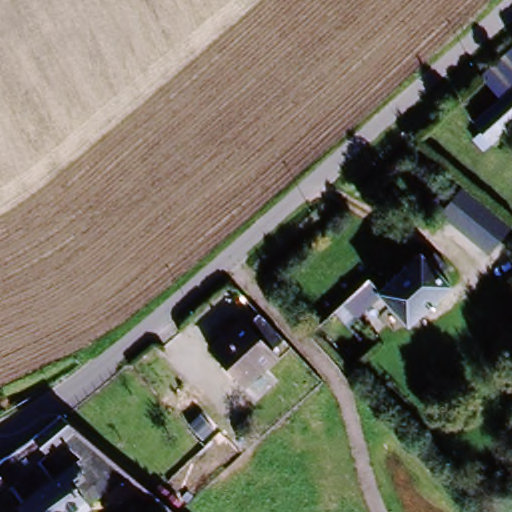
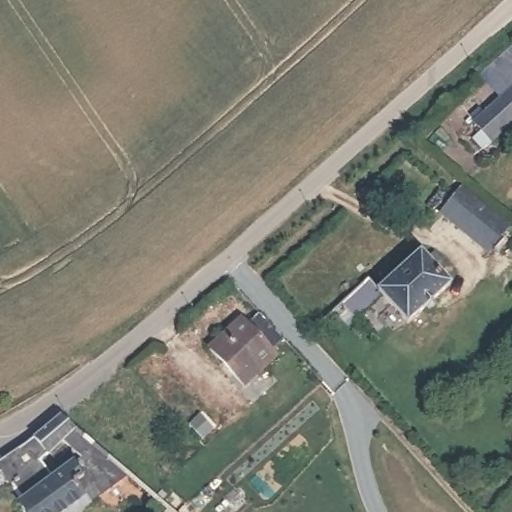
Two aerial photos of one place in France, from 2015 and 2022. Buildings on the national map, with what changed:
unchanged [(472,130),(480,121),(474,114),(495,94),(476,72),(510,42),(512,44),(512,121),(486,146),(472,130)]
unchanged [(507,231),(489,252),(441,214),(462,192),(507,231)]
unchanged [(408,322),(381,294),(421,254),(428,262),(439,252),(453,267),(443,277),(450,285),(408,322)]
unchanged [(286,343),(272,354),(277,361),(243,390),(210,349),(244,319),(249,326),(262,315),(286,343)]
unchanged [(59,446),(24,472),(36,487),(67,464),(83,486),(73,493),(87,510),(85,512),(20,512),(0,488),(0,489),(0,459),(44,425),(56,416),(77,441),(92,461),(79,472),(59,446)]

